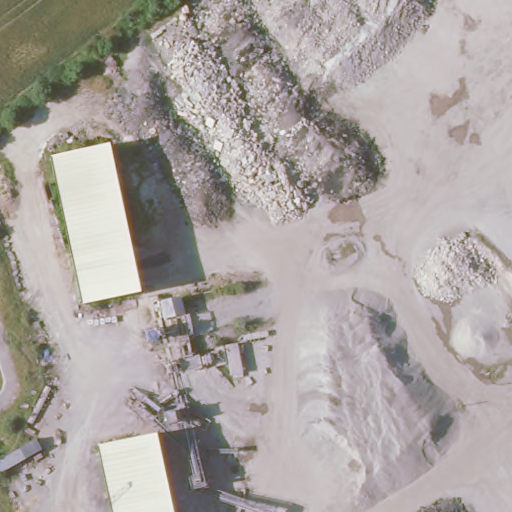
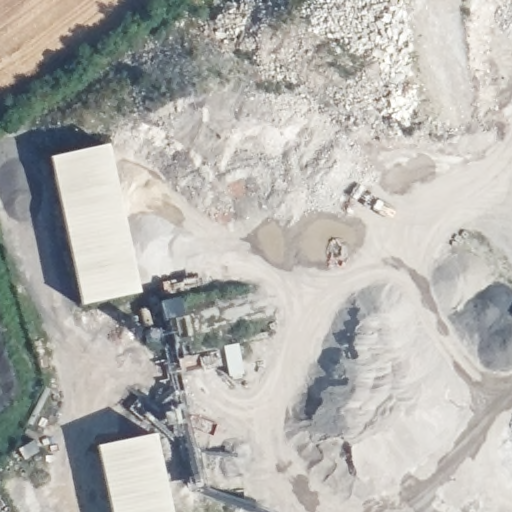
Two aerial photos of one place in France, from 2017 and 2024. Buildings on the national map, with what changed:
unchanged [(112,157),(144,305),(86,317),(54,170),(112,157)]
unchanged [(156,431),(173,512),(112,512),(97,443),(156,431)]

